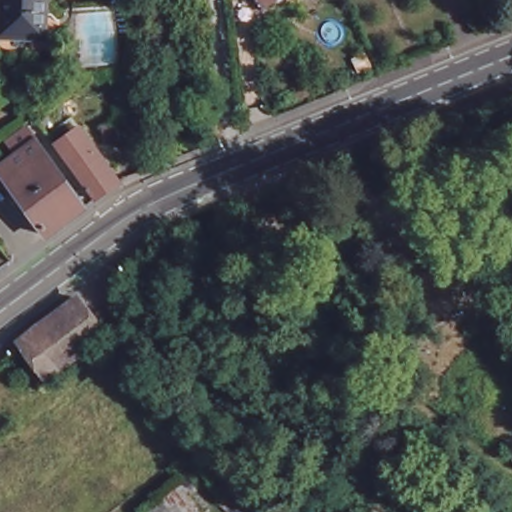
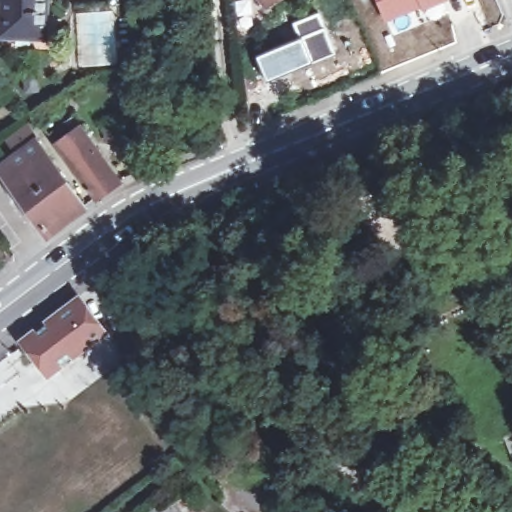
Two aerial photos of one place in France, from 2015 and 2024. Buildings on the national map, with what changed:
unchanged [(42,37),(0,36),(0,0),(43,0),(42,37)]
unchanged [(266,4),(262,0),(272,0),(266,4)]
new [(422,11),(384,23),(375,0),(417,0),(422,11)]
new [(451,1),(422,11),(417,0),(450,0),(451,1)]
unchanged [(75,11),(113,8),(118,61),(79,65),(75,11)]
new [(299,37),(293,22),(319,11),(336,54),(266,80),(256,54),(299,37)]
unchanged [(122,191),(96,210),(57,155),(83,137),(122,191)]
unchanged [(40,151),(88,216),(49,246),(23,210),(1,178),(40,151)]
unchanged [(55,389),(45,377),(22,346),(18,340),(76,298),(103,334),(63,364),(72,376),(55,389)]
unchanged [(512,433),(512,457),(503,437),(512,433)]
unchanged [(187,477),(197,490),(191,495),(203,512),(169,512),(159,499),(187,477)]

